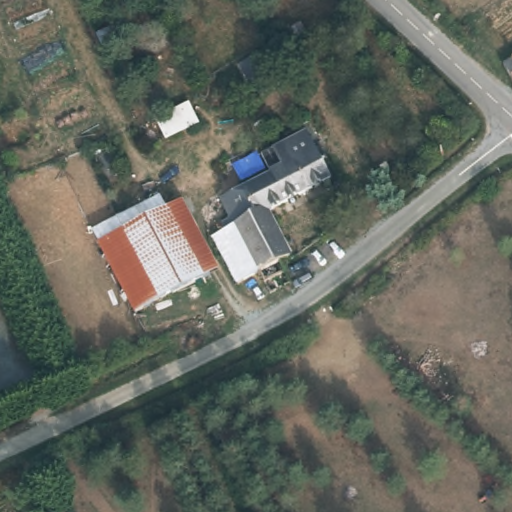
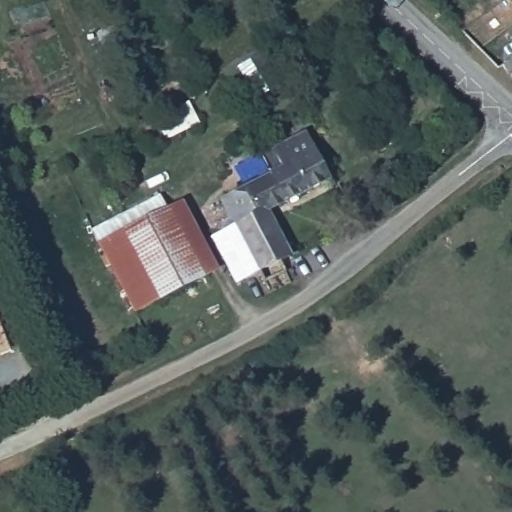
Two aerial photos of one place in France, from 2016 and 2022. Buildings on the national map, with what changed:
unchanged [(507,55),(512,52),(512,64),(507,55)]
unchanged [(152,117),(191,98),(203,122),(166,140),(152,117)]
unchanged [(235,223),(223,195),(272,170),(264,152),(308,129),(333,176),(268,207),(290,250),(280,256),(286,269),(264,280),(258,270),(239,278),(237,279),(214,232),(235,223)]
unchanged [(213,270),(143,304),(109,237),(179,202),(213,270)]

